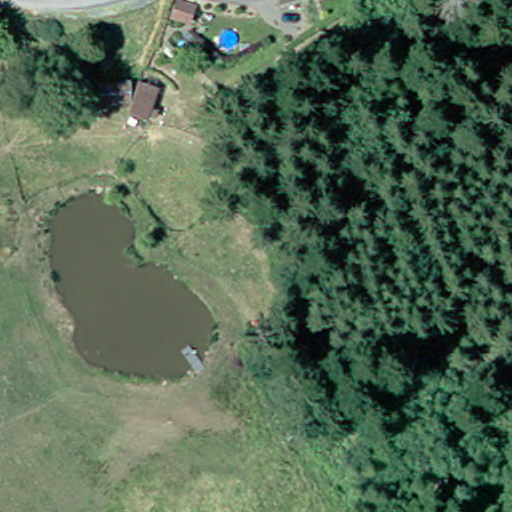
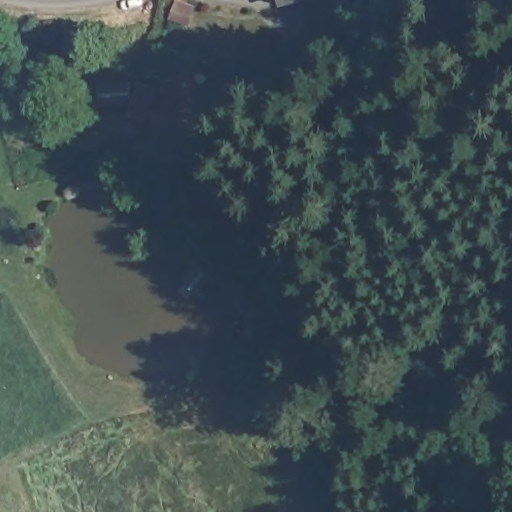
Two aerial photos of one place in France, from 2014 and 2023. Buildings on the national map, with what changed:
unchanged [(275,0),(322,0),(279,15),(275,0)]
unchanged [(99,94),(145,88),(166,93),(154,126),(129,124),(135,106),(104,111),(99,94)]

